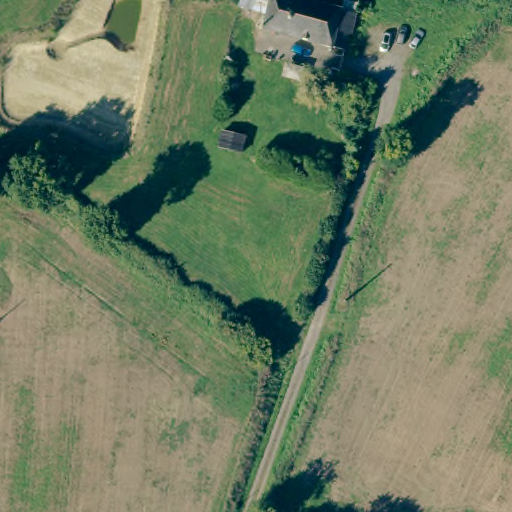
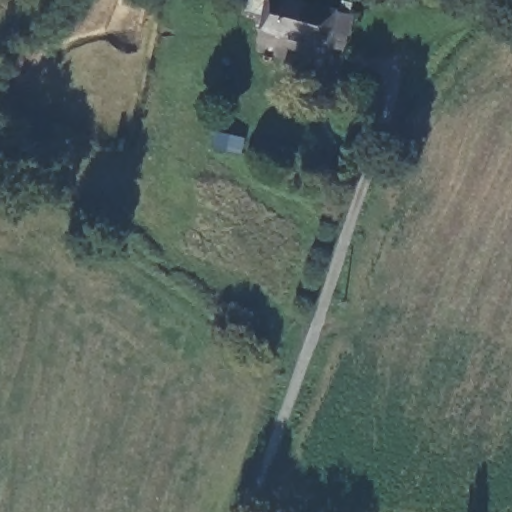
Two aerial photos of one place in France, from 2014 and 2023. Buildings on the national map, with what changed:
unchanged [(339,46),(258,28),(265,0),(296,0),(333,9),(347,12),(342,31),(339,46)]

